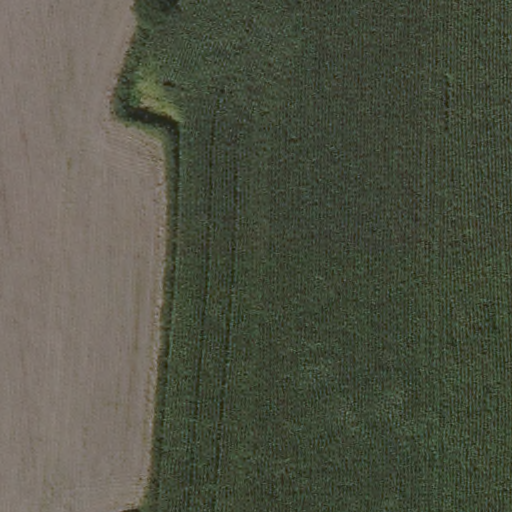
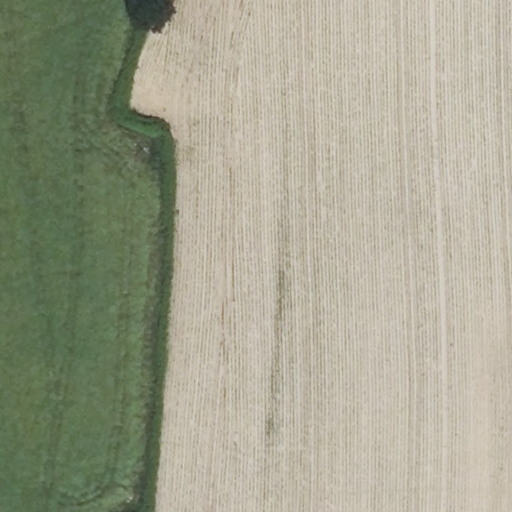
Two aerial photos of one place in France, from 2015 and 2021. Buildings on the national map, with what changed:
[]

